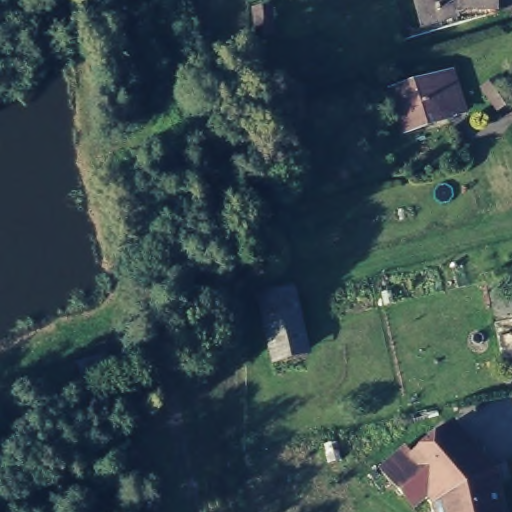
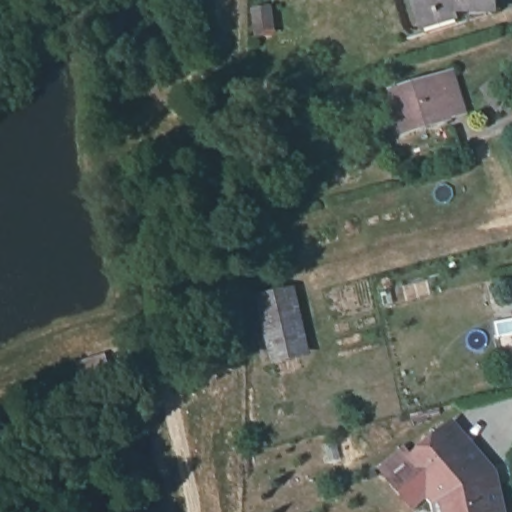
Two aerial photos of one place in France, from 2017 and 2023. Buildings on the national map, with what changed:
unchanged [(421,19),(419,11),(416,0),(490,0),(490,3),(450,2),(452,10),(421,19)]
unchanged [(454,65),(465,103),(407,120),(396,82),(454,65)]
unchanged [(295,348),(268,354),(254,293),(280,287),(295,348)]
unchanged [(417,505),(395,478),(418,458),(417,456),(458,421),(495,466),(500,484),(503,483),(510,512),(443,512),(438,488),(417,505)]

